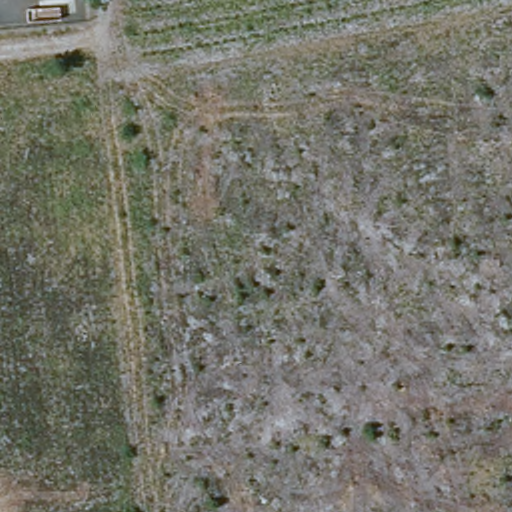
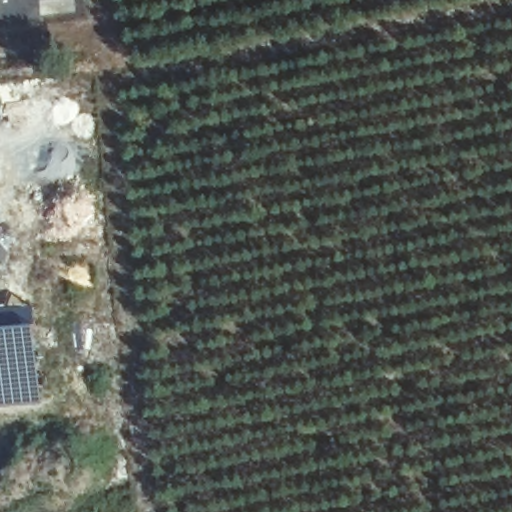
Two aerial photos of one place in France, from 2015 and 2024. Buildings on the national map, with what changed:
new [(34,324),(41,404),(0,406),(0,326),(34,324)]

